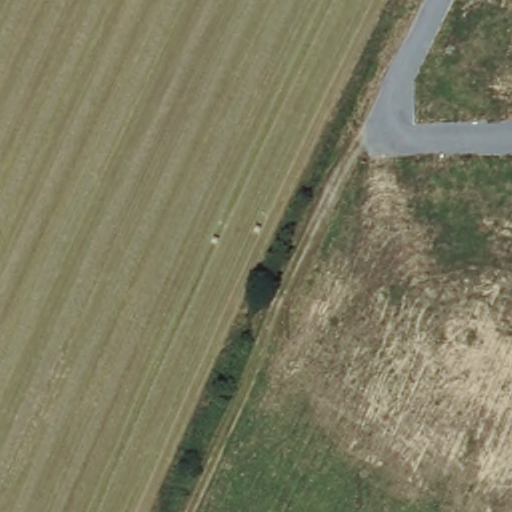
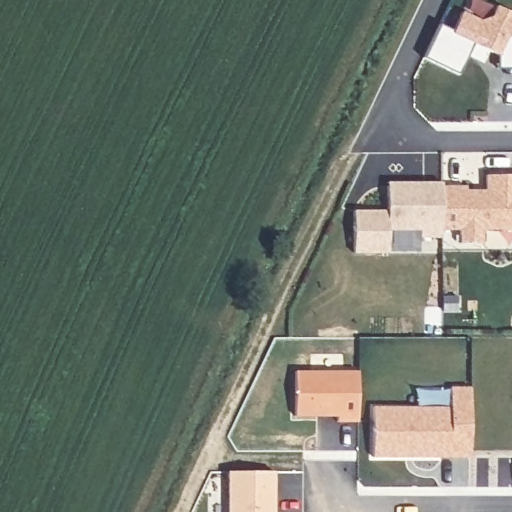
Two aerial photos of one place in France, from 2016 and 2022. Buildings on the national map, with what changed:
new [(499,68),(499,55),(487,51),(482,64),(466,56),(458,73),(426,57),(441,26),(453,33),(463,13),(480,21),(492,17),(497,7),(502,8),(512,13),(512,68),(499,68)]
new [(442,184),(466,184),(466,192),(486,192),(486,173),(512,173),(512,227),(483,227),(483,241),(461,241),(461,227),(442,227),(442,184)]
new [(387,209),(387,184),(387,180),(399,180),(442,180),(442,184),(442,227),(442,235),(421,235),(421,228),(389,228),(389,251),(354,251),(354,209),(387,209)]
new [(469,387),(469,457),(372,458),(373,407),(450,407),(450,388),(469,387)]

